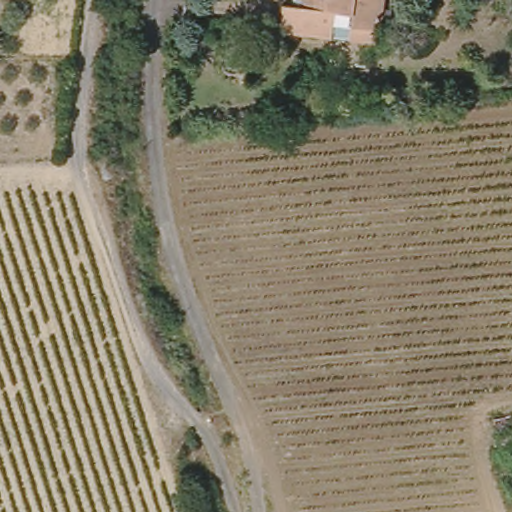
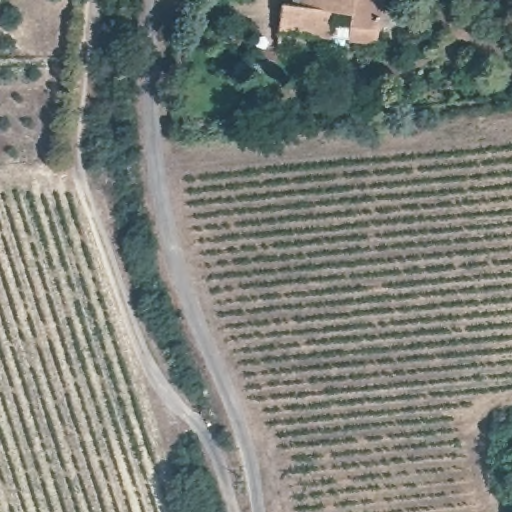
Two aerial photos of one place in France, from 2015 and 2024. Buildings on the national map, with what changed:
unchanged [(320,39),(266,30),(269,6),(280,7),(281,0),(372,0),(366,31),(365,46),(320,39)]

